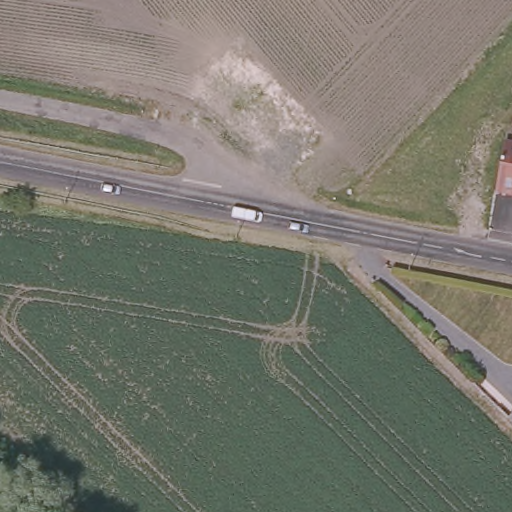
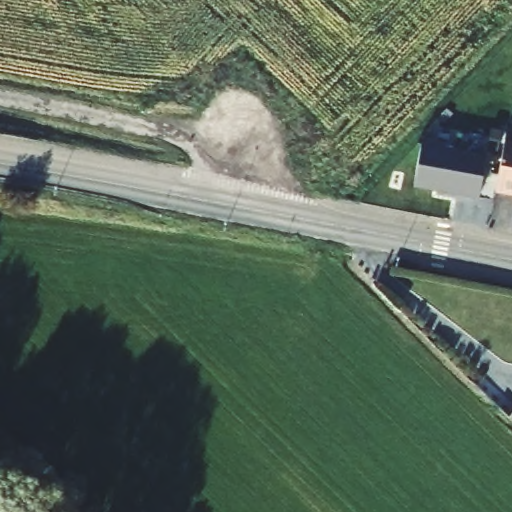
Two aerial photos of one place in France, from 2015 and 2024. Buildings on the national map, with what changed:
unchanged [(512,196),(494,193),(503,140),(512,142),(512,196)]
new [(420,142),(485,154),(478,196),(446,191),(447,187),(436,186),(436,189),(413,185),(420,142)]

